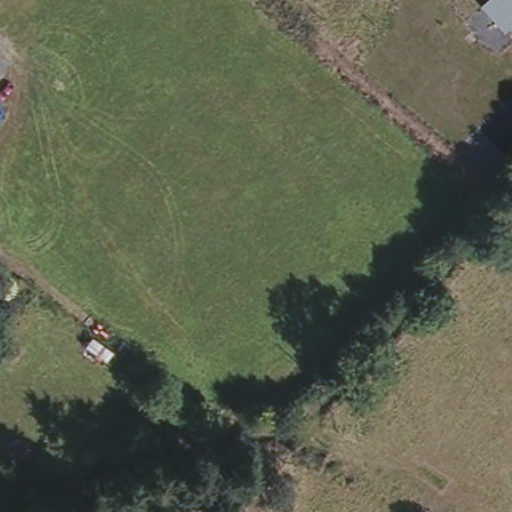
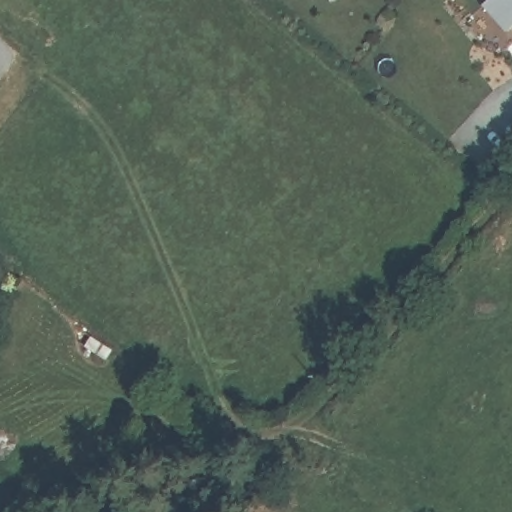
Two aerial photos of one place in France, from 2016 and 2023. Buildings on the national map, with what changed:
unchanged [(508,35),(483,10),(492,0),(512,0),(512,32),(508,35)]

